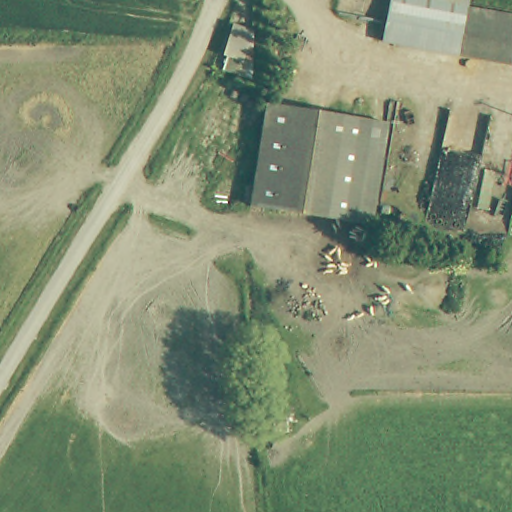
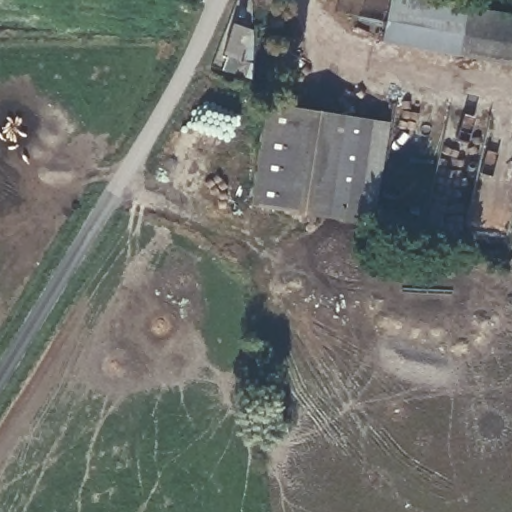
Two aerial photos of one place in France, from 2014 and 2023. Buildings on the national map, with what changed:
unchanged [(382,42),(391,0),(469,0),(468,7),(512,15),(512,65),(382,42)]
unchanged [(225,56),(223,55),(234,24),(254,31),(237,77),(220,70),(225,56)]
unchanged [(371,225),(251,205),(268,105),(388,123),(371,225)]

